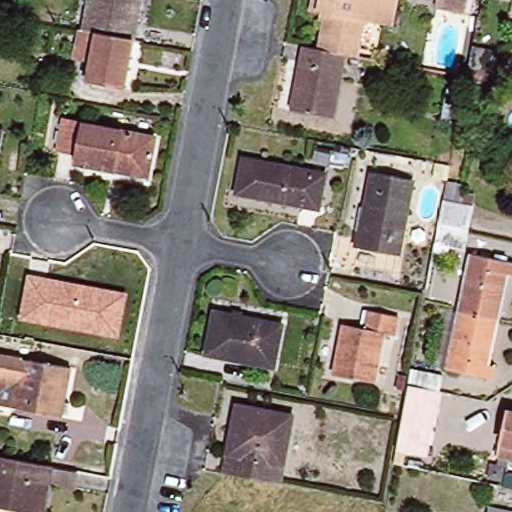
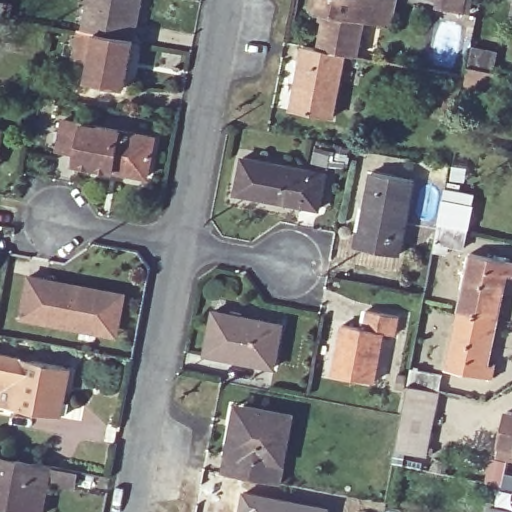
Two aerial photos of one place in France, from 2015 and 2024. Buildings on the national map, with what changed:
unchanged [(133,43),(85,33),(91,0),(141,0),(133,43)]
unchanged [(317,51),(325,16),(317,15),(309,13),(311,0),(396,0),(390,28),(363,23),(357,58),(342,56),(317,51)]
unchanged [(465,9),(438,5),(438,0),(466,0),(465,9)]
unchanged [(85,33),(133,43),(124,91),(90,84),(93,62),(78,60),(83,33),(85,33)]
unchanged [(472,44),(497,49),(492,70),(468,65),(472,44)]
unchanged [(317,51),(342,56),(330,117),(290,110),(301,48),(317,51)]
unchanged [(148,174),(78,162),(79,153),(59,149),(63,117),(156,134),(148,174)]
unchanged [(0,135),(0,129),(1,130),(0,135)]
unchanged [(319,207),(237,192),(242,157),(326,172),(319,207)]
unchanged [(398,254),(355,245),(370,169),(413,177),(398,254)]
unchanged [(449,172),(447,187),(433,184),(436,170),(449,172)]
unchanged [(446,189),(462,192),(458,211),(472,214),(467,236),(463,255),(435,249),(438,230),(446,189)]
unchanged [(474,254),(512,261),(512,273),(511,273),(501,317),(463,309),(474,254)]
unchanged [(127,294),(120,337),(19,318),(26,275),(127,294)]
unchanged [(501,317),(491,362),(499,363),(497,375),(451,366),(463,309),(501,317)]
unchanged [(396,336),(386,335),(376,383),(334,375),(344,326),(363,330),(367,310),(401,317),(396,336)]
unchanged [(276,371),(207,358),(215,314),(285,327),(276,371)]
unchanged [(0,376),(0,353),(63,365),(55,417),(6,407),(11,378),(0,376)]
unchanged [(409,369),(443,376),(429,458),(394,450),(409,369)]
unchanged [(220,472),(228,429),(236,431),(240,406),(289,415),(277,482),(220,472)]
unchanged [(498,455),(508,409),(512,410),(512,458),(498,455)]
unchanged [(47,512),(30,512),(0,506),(0,455),(55,466),(47,512)]
new [(331,506),(330,512),(237,512),(242,489),(331,506)]
unchanged [(512,510),(512,512),(489,512),(491,506),(512,510)]

